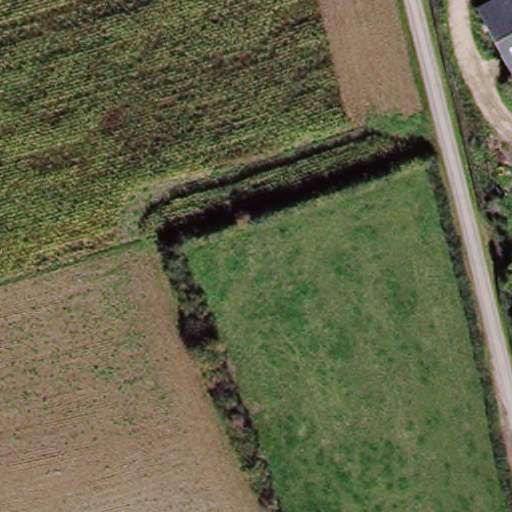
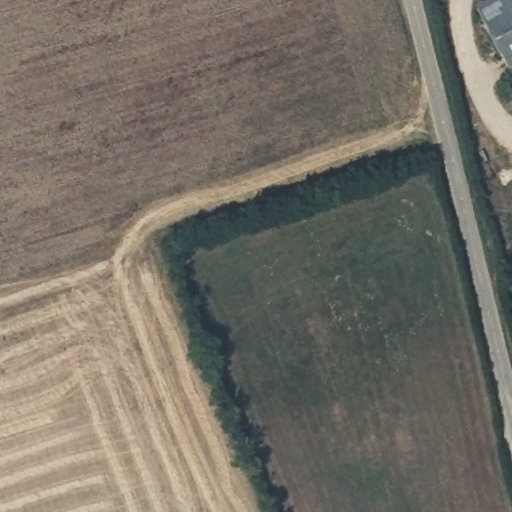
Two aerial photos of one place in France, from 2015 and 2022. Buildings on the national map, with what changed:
unchanged [(512,0),(512,87),(473,0),(512,0)]

